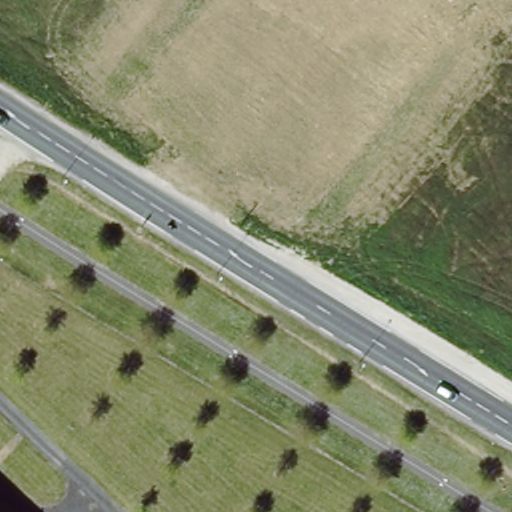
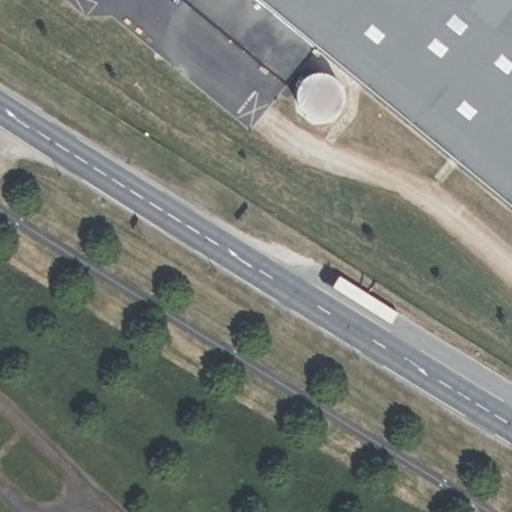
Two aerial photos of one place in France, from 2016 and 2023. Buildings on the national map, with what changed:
new [(317,47),(287,85),(184,0),(512,0),(512,207),(317,47)]

